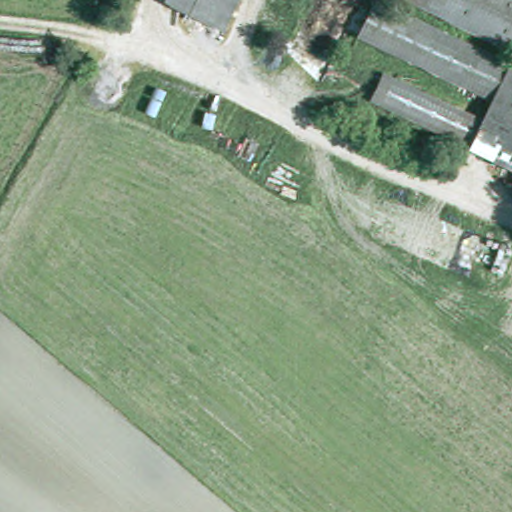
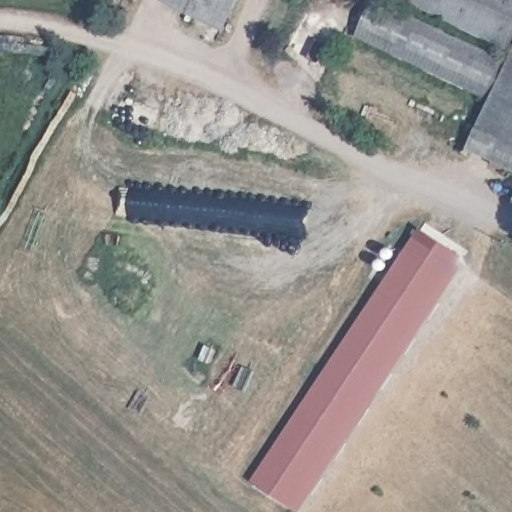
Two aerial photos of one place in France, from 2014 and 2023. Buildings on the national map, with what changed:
unchanged [(226,25),(173,0),(237,0),(226,25)]
unchanged [(388,70),(486,117),(496,96),(360,29),(374,0),(382,0),(512,61),(512,160),(375,96),(388,70)]
unchanged [(419,0),(512,0),(512,43),(419,0)]
new [(252,480),(420,229),(467,258),(299,511),(252,480)]

